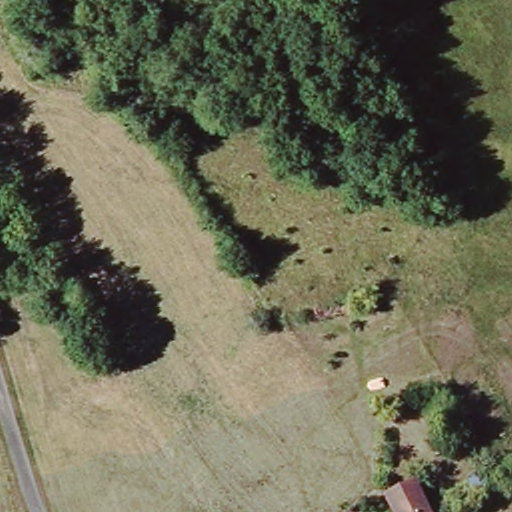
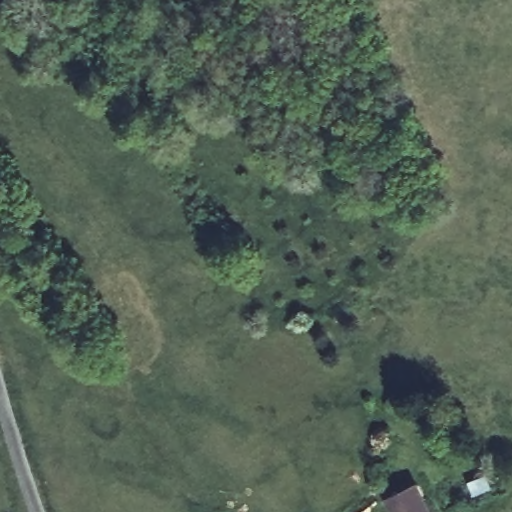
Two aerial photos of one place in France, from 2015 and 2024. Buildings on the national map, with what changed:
unchanged [(394,495),(424,484),(437,512),(404,512),(394,495)]

